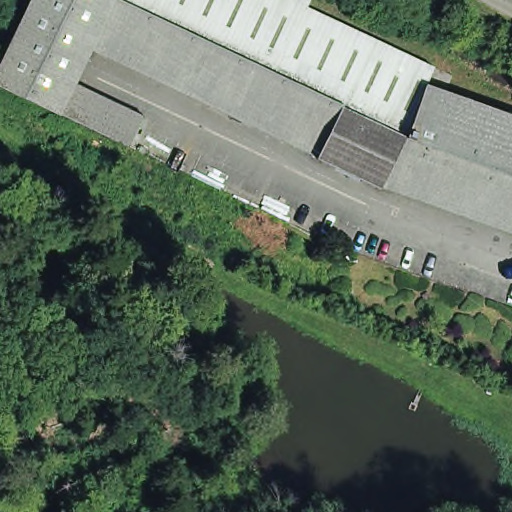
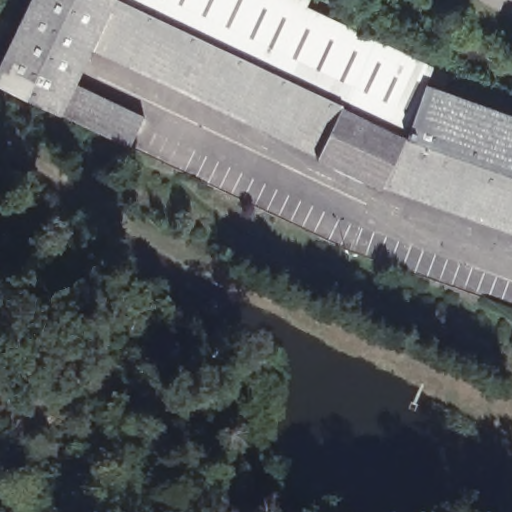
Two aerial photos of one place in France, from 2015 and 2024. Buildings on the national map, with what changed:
unchanged [(308,0),(307,3),(427,58),(435,61),(427,77),(512,116),(512,240),(387,184),(383,193),(317,163),(320,153),(95,51),(78,89),(64,119),(0,90),(0,70),(31,0),(308,0)]
unchanged [(78,89),(145,120),(132,150),(64,119),(78,89)]

